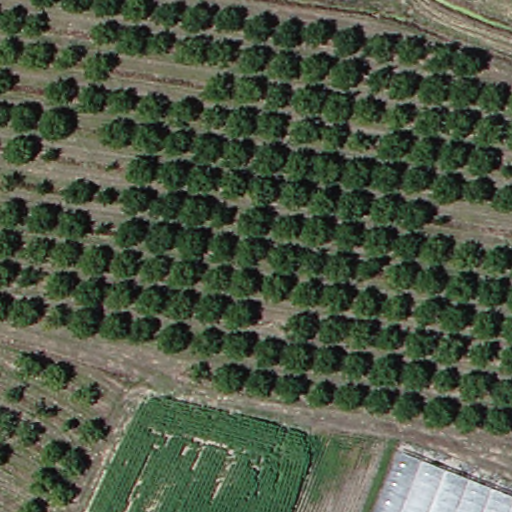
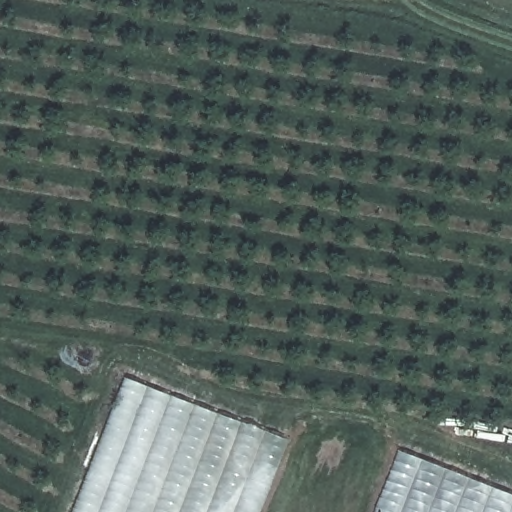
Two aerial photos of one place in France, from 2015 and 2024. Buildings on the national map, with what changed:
new [(286,442),(259,512),(74,512),(124,381),(286,442)]
unchanged [(512,494),(512,512),(380,512),(404,452),(512,494)]

